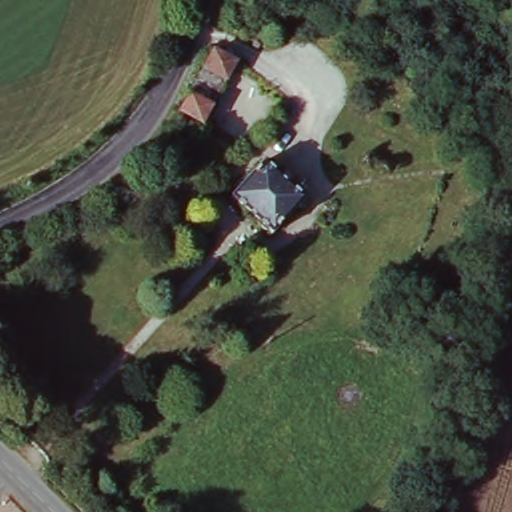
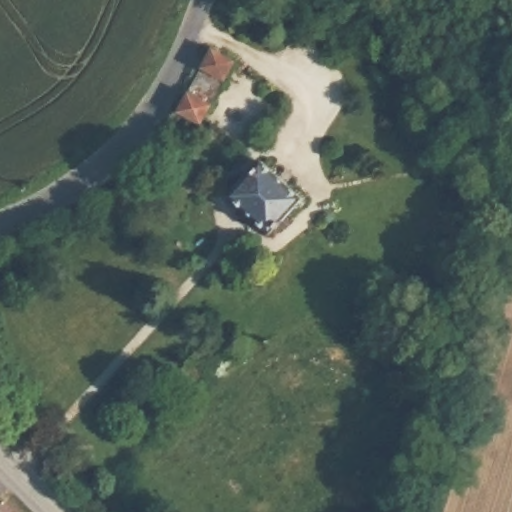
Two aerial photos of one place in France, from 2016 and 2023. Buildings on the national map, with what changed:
unchanged [(213,49),(234,60),(200,123),(180,111),(213,49)]
unchanged [(306,203),(276,238),(236,199),(267,167),(306,203)]

